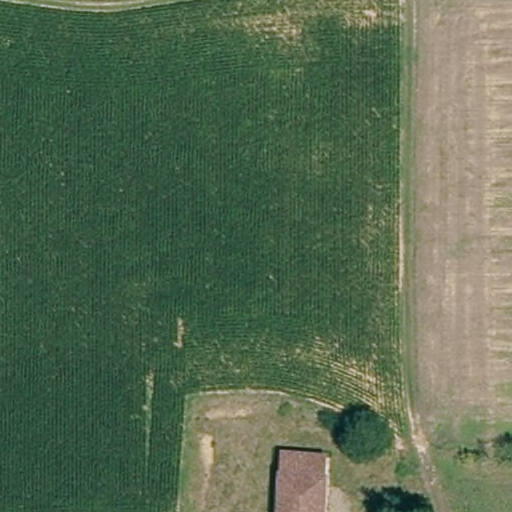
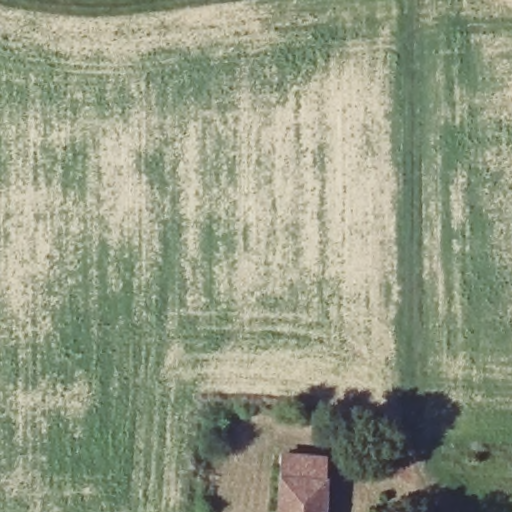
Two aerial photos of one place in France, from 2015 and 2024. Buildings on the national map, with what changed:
unchanged [(290,450),(332,457),(326,512),(283,512),(289,457),(290,450)]

